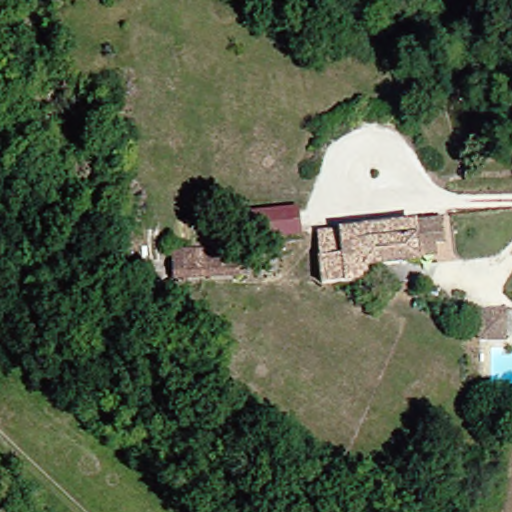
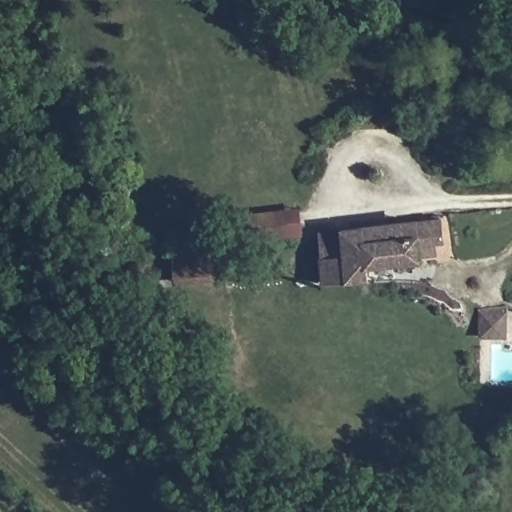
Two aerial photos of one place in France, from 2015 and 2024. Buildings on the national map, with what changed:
unchanged [(419,253),(363,256),(365,272),(324,276),(322,250),(318,227),(338,224),(442,213),(445,234),(436,237),(436,248),(419,253)]
unchanged [(227,278),(172,284),(170,257),(228,253),(227,278)]
unchanged [(470,302),(502,309),(499,326),(497,340),(466,333),(468,321),(470,302)]

